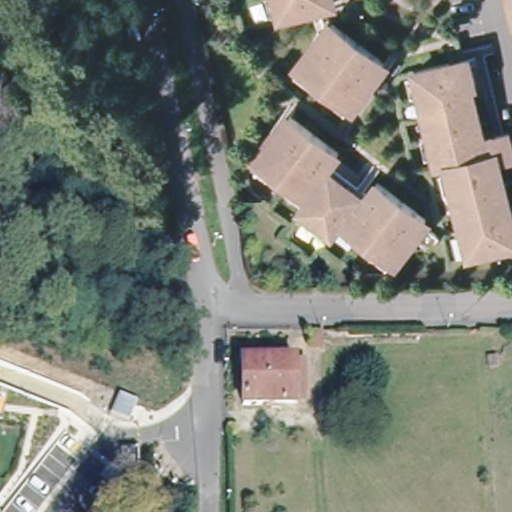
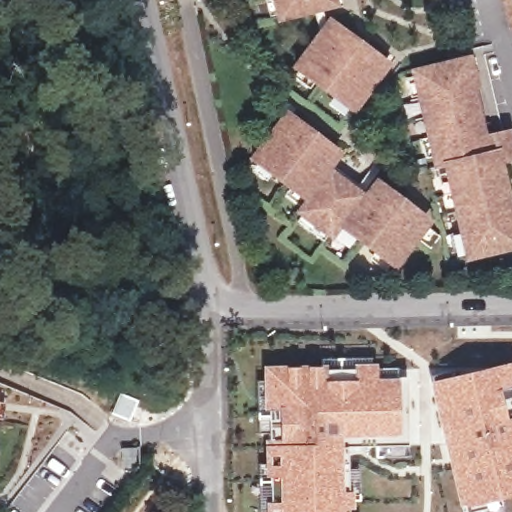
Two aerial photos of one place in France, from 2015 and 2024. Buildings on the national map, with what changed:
unchanged [(320,6),(285,15),(282,0),(327,0),(320,3),(320,6)]
unchanged [(512,0),(512,18),(508,0),(512,0)]
unchanged [(353,104),(298,63),(320,34),(322,36),(335,19),(385,57),(372,74),(375,76),(353,104)]
unchanged [(506,243),(471,250),(447,157),(438,159),(415,66),(449,58),(450,64),(471,58),(476,79),(472,80),(485,133),(510,126),(512,134),(512,152),(500,154),(512,200),(512,237),(505,239),(506,243)]
unchanged [(336,230),(306,207),(314,196),(259,155),(281,126),(284,128),(296,112),(345,148),(332,164),(370,193),(382,177),(432,214),(420,229),(422,232),(400,260),(345,219),(336,230)]
demolished [(325,353),(319,352),(313,352),(312,331),(323,331),(325,353)]
new [(322,366),(322,357),(371,356),(371,362),(377,363),(377,378),(407,377),(410,442),(347,443),(346,489),(353,489),(353,509),(343,509),(344,512),(268,512),(268,501),(273,501),(273,478),(265,477),(266,439),(271,439),(270,410),(264,411),(264,364),(322,366)]
demolished [(294,362),(295,406),(244,407),(242,363),(294,362)]
new [(428,383),(512,362),(512,494),(458,507),(428,383)]

